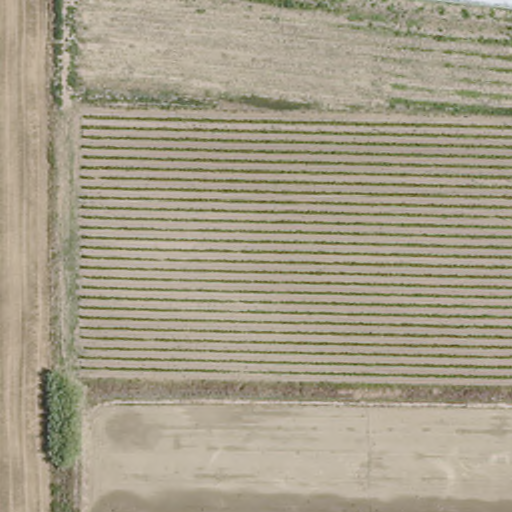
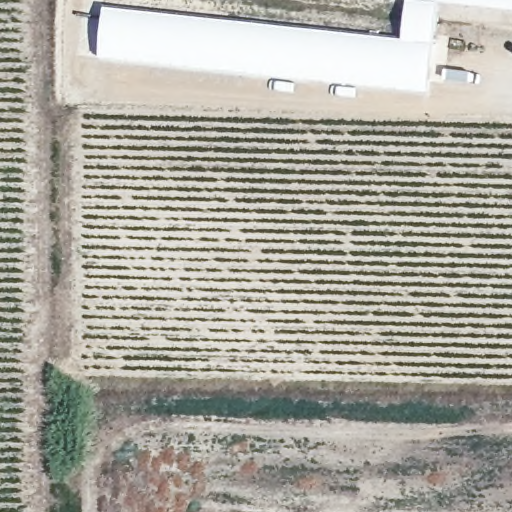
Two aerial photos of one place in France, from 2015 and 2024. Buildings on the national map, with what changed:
unchanged [(512,0),(512,11),(409,0),(512,0)]
new [(122,11),(426,44),(422,86),(117,53),(122,11)]

